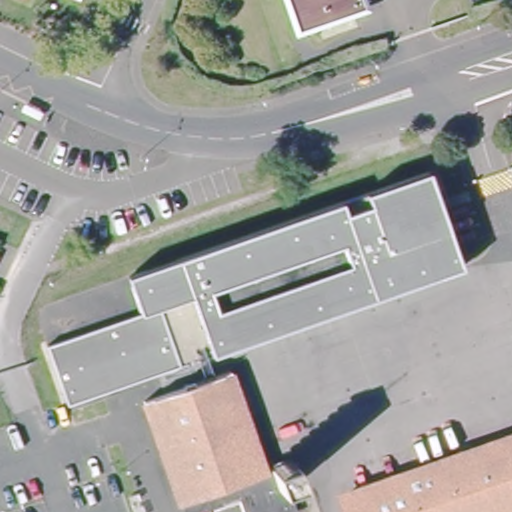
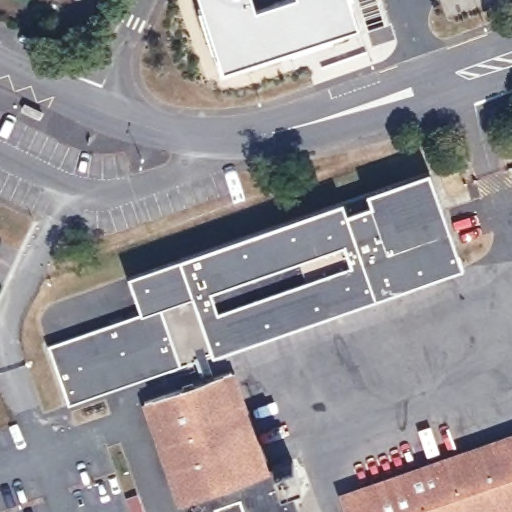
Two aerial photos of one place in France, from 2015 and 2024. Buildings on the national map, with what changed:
new [(227,67),(204,0),(254,0),(256,6),(276,0),(353,0),(360,23),(227,67)]
demolished [(305,28),(291,22),(284,0),(360,0),(355,11),(305,28)]
unchanged [(143,312),(130,276),(212,246),(429,169),(451,229),(463,265),(292,325),(110,391),(90,331),(143,312)]
unchanged [(110,391),(93,397),(70,406),(49,346),(90,331),(110,391)]
unchanged [(193,509),(185,512),(167,512),(165,504),(161,505),(126,406),(207,376),(240,467),(244,475),(272,465),(280,487),(266,491),(274,512),(194,512),(193,509)]
unchanged [(338,494),(512,432),(512,512),(344,512),(338,494)]

